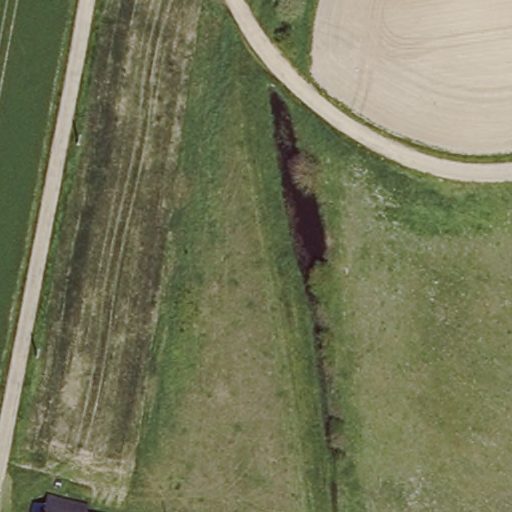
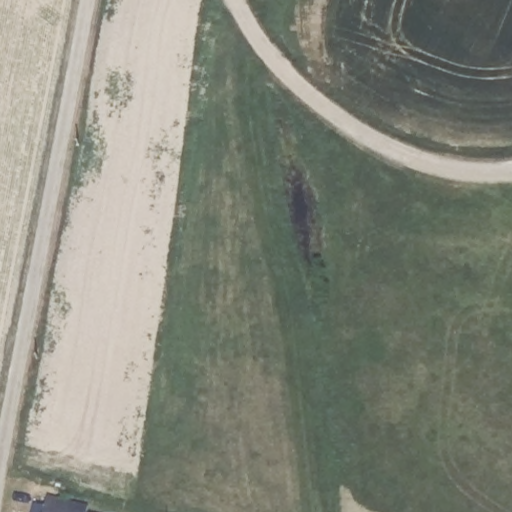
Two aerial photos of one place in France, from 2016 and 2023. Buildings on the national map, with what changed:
unchanged [(48,507),(50,497),(91,507),(90,512),(36,512),(37,505),(48,507)]

